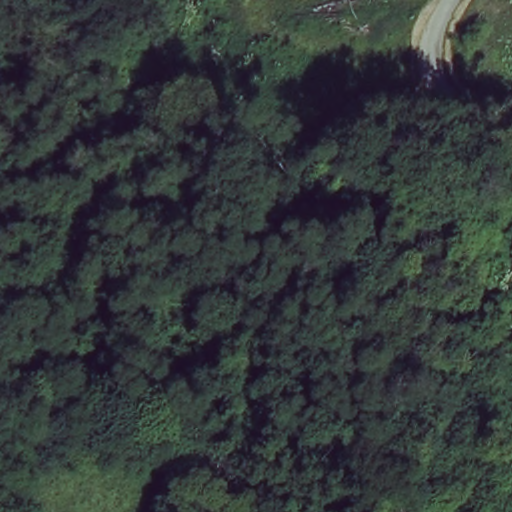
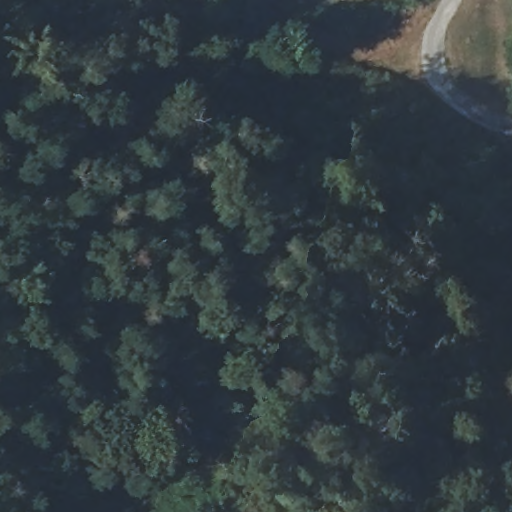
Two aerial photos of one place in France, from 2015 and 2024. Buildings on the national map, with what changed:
[]

